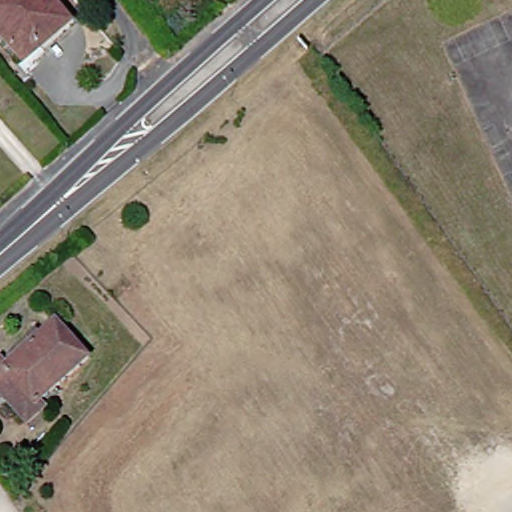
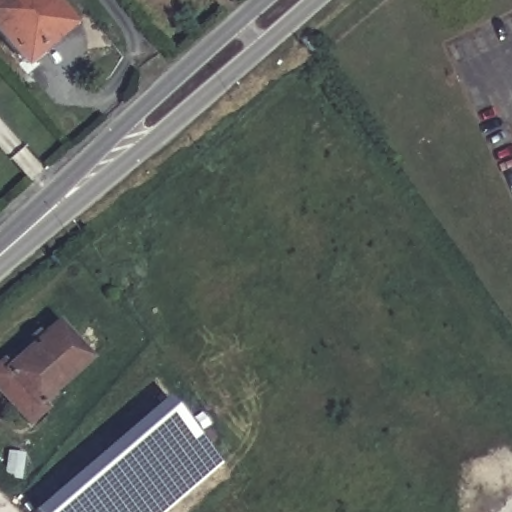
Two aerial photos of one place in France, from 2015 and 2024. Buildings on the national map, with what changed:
unchanged [(40,59),(35,54),(18,68),(0,47),(0,0),(38,0),(63,29),(68,25),(73,30),(40,59)]
unchanged [(112,300),(108,295),(112,291),(120,299),(116,303),(112,300)]
unchanged [(88,359),(38,403),(33,408),(0,370),(0,369),(37,336),(55,321),(88,359)]
unchanged [(33,332),(37,336),(0,369),(0,362),(33,332)]
unchanged [(43,408),(25,424),(0,396),(0,370),(33,408),(38,403),(43,408)]
new [(161,512),(30,512),(163,398),(218,463),(161,512)]

